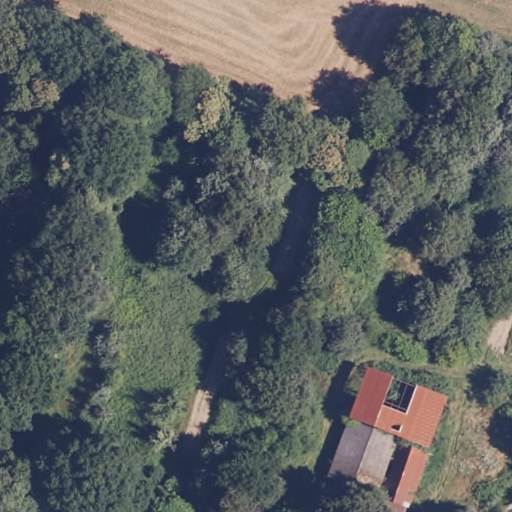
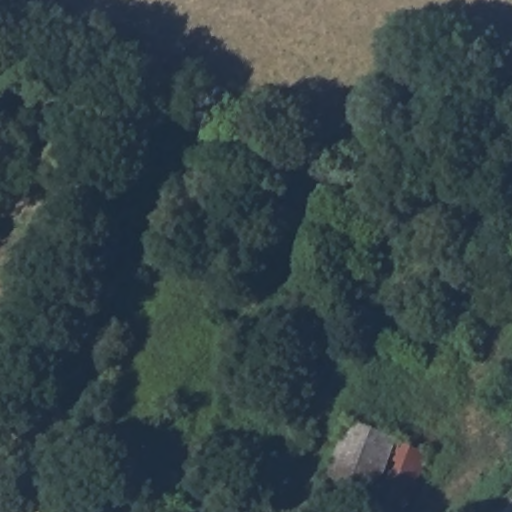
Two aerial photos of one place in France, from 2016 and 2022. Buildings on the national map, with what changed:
demolished [(365,366),(442,395),(423,451),(397,439),(347,419),(364,366),(365,366)]
unchanged [(325,474),(347,419),(397,439),(423,451),(401,506),(399,512),(367,512),(373,494),(325,474)]

